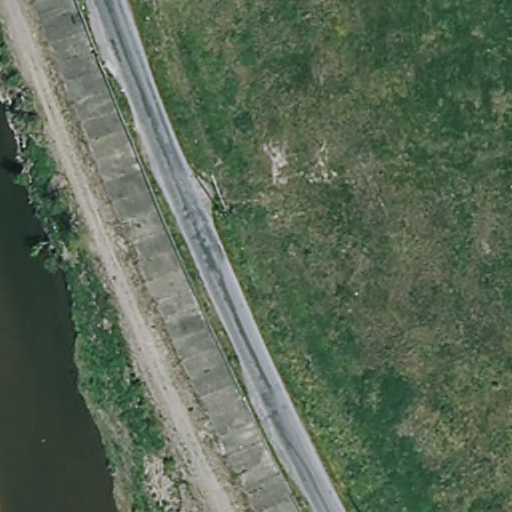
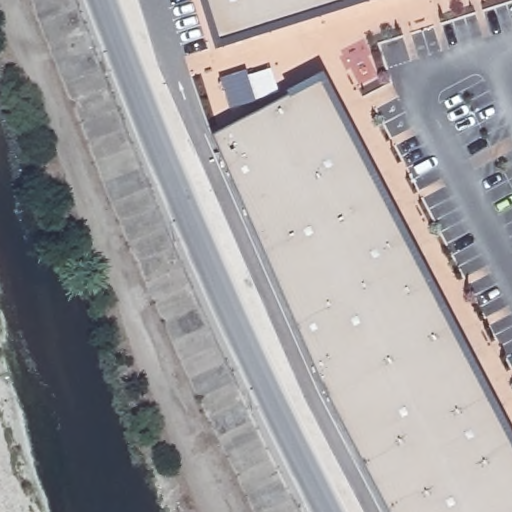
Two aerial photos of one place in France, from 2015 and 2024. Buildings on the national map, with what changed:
new [(199,0),(379,0),(216,51),(199,0)]
new [(249,76),(269,66),(277,90),(230,109),(222,78),(246,72),(249,76)]
new [(324,74),(512,433),(512,512),(388,512),(325,392),(213,136),(289,97),(287,93),(324,74)]

